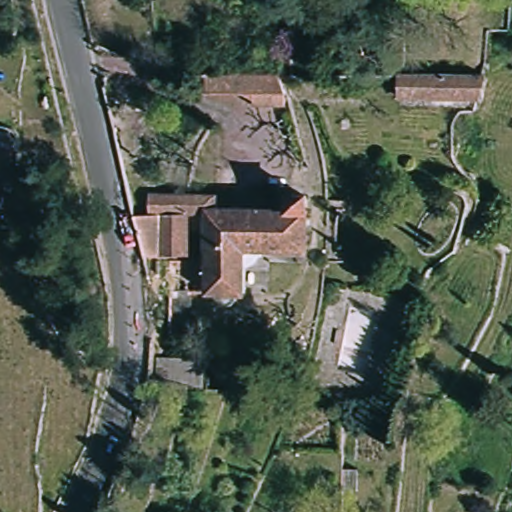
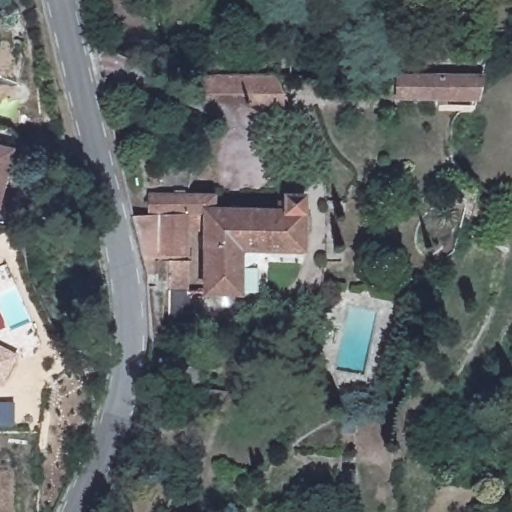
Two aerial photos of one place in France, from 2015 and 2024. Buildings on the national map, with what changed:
unchanged [(297,52),(316,52),(315,76),(299,76),(297,76),(297,52)]
unchanged [(284,106),(253,106),(253,99),(239,92),(206,92),(206,75),(249,75),(277,76),(284,91),(284,106)]
unchanged [(482,84),(481,99),(397,100),(397,91),(397,76),(483,76),(482,84)]
unchanged [(0,207),(0,148),(13,152),(0,207)]
unchanged [(245,252),(245,292),(207,293),(206,256),(144,256),(132,217),(153,210),(153,196),(216,192),(216,207),(283,207),(283,194),(304,192),(305,254),(245,252)]
new [(3,388),(0,387),(0,346),(20,356),(3,388)]

